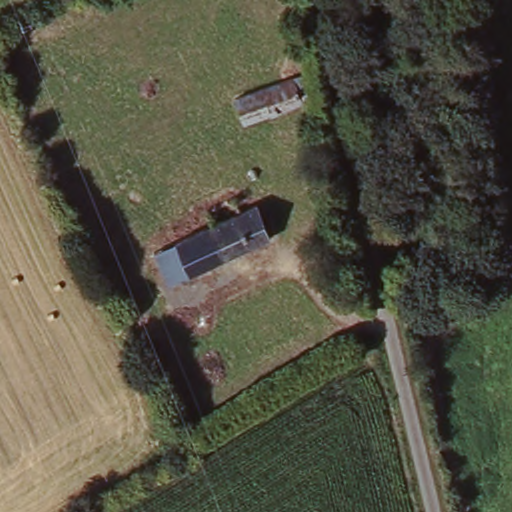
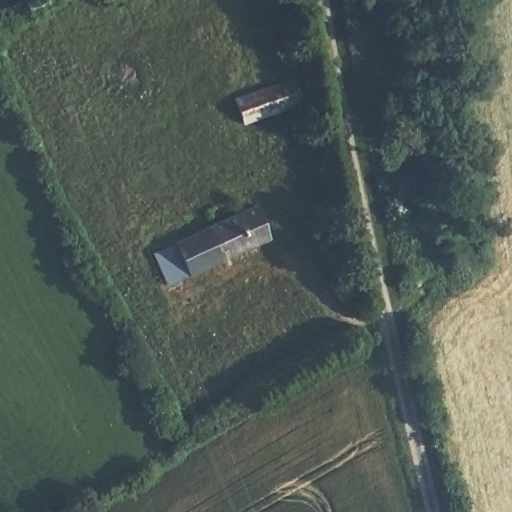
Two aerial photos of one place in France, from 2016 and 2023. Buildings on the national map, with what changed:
unchanged [(306,71),(315,96),(247,120),(240,96),(306,71)]
unchanged [(157,251),(179,240),(206,227),(216,222),(245,210),(258,203),(274,237),(194,273),(172,283),(157,251)]

